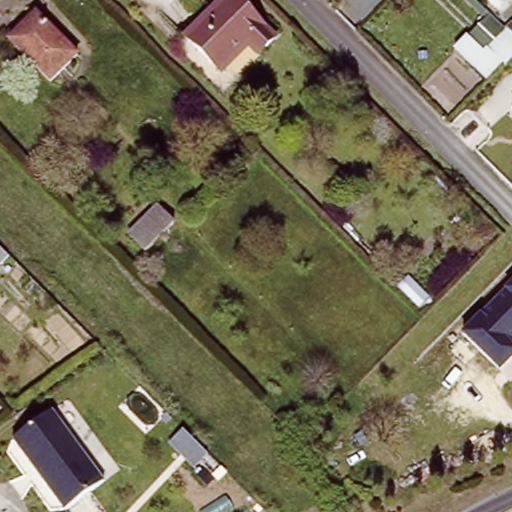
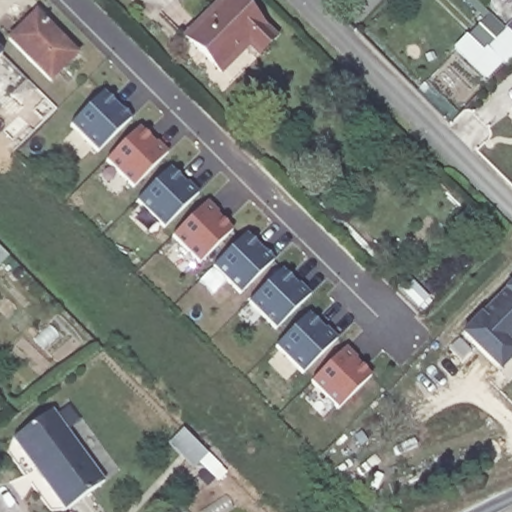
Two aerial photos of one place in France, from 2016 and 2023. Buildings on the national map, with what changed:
unchanged [(256,60),(246,50),(218,77),(183,42),(225,0),(230,0),(273,43),(256,60)]
unchanged [(38,13),(79,56),(52,83),(10,40),(38,13)]
unchanged [(458,50),(469,40),(492,15),(509,32),(512,35),(512,60),(510,63),(506,59),(489,80),(458,50)]
unchanged [(512,28),(512,35),(509,32),(512,28)]
new [(0,57),(0,53),(2,55),(0,57)]
new [(98,154),(70,125),(104,91),(132,118),(98,154)]
unchanged [(512,106),(512,108),(511,107),(512,106)]
new [(134,189),(107,162),(139,126),(169,153),(134,189)]
new [(164,230),(136,202),(170,167),(187,184),(188,182),(199,193),(164,230)]
new [(200,265),(172,237),(206,201),(220,215),(218,217),(234,231),(200,265)]
demolished [(156,205),(172,222),(144,249),(128,232),(156,205)]
new [(240,296),(213,268),(246,233),(275,260),(240,296)]
unchanged [(7,258),(0,265),(0,251),(7,258)]
new [(276,332),(249,303),(282,268),(311,296),(276,332)]
unchanged [(511,344),(512,345),(512,358),(499,374),(459,333),(512,278),(512,343),(511,344)]
new [(303,376),(275,347),(310,312),(325,328),(326,327),(338,338),(303,376)]
new [(338,412),(311,384),(346,347),(358,358),(356,362),(372,377),(338,412)]
unchanged [(104,480),(66,507),(13,435),(50,407),(104,480)]
new [(217,485),(198,466),(193,470),(167,443),(183,428),(228,472),(217,485)]

